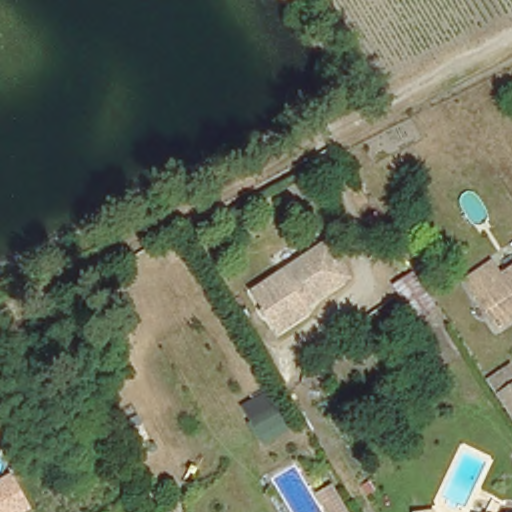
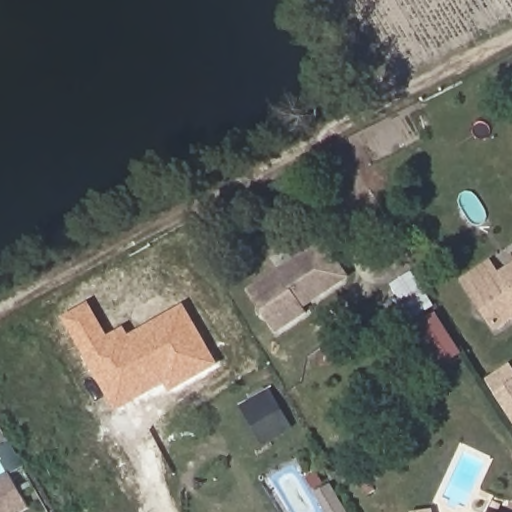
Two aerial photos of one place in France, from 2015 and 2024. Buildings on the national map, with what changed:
unchanged [(279,271),(280,273),(301,259),(300,257),(325,240),(345,270),(343,280),(303,306),(306,311),(277,330),(250,290),(279,271)]
unchanged [(465,275),(492,258),(500,271),(512,264),(512,313),(496,323),(465,275)]
unchanged [(417,318),(400,292),(395,285),(412,274),(416,281),(434,307),(417,318)]
new [(171,393),(166,384),(115,412),(62,317),(89,303),(107,336),(124,328),(128,336),(184,304),(219,365),(171,393)]
unchanged [(510,364),(512,367),(512,419),(496,394),(487,380),(510,364)]
unchanged [(257,438),(240,407),(267,389),(286,418),(257,438)]
unchanged [(9,474),(31,510),(29,512),(0,512),(0,480),(9,474)]
unchanged [(315,494),(333,484),(349,512),(324,512),(315,494)]
unchanged [(491,498),(498,502),(494,512),(485,512),(491,498)]

